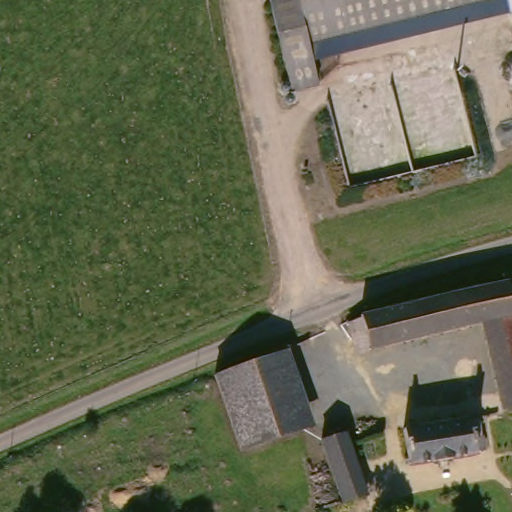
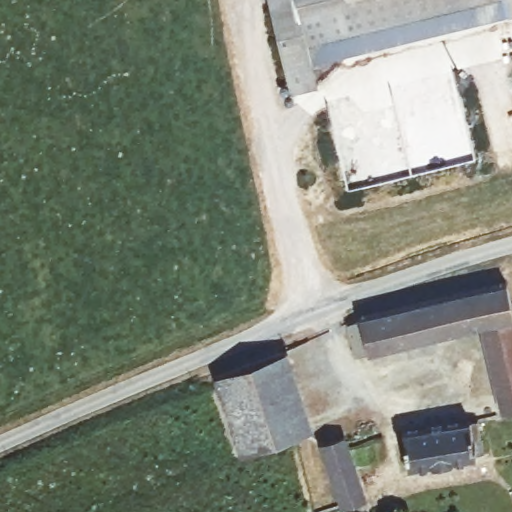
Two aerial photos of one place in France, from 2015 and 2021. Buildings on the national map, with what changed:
unchanged [(314,41),(323,81),(296,87),(277,0),(304,0),(314,41)]
unchanged [(314,41),(304,0),(489,0),(314,41)]
unchanged [(510,0),(512,0),(512,9),(510,0)]
unchanged [(508,408),(488,318),(361,348),(353,318),(367,315),(367,311),(512,281),(512,407),(508,408)]
unchanged [(313,426),(308,428),(254,447),(227,370),(287,349),(313,426)]
unchanged [(390,433),(405,431),(466,421),(480,422),(485,451),(472,457),(410,466),(395,468),(390,433)]
unchanged [(366,495),(343,503),(321,439),(345,431),(366,495)]

